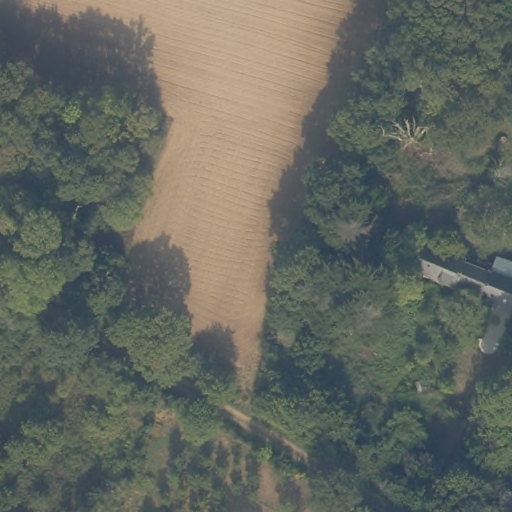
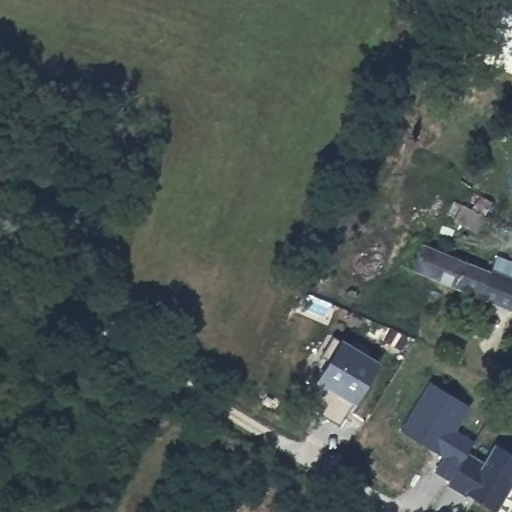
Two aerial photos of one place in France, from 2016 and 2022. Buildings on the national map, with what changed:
unchanged [(418,236),(484,262),(490,245),(511,253),(505,269),(512,271),(512,301),(407,263),(418,236)]
new [(380,361),(355,404),(352,402),(339,424),(303,405),(317,382),(314,381),(328,360),(320,355),(332,335),(340,341),(342,337),(380,361)]
new [(455,431),(472,440),(467,452),(450,481),(433,471),(442,453),(400,430),(429,381),(469,405),(455,431)]
new [(483,461),(495,442),(512,452),(512,496),(511,499),(506,496),(497,511),(466,493),(466,495),(447,484),(450,481),(467,452),(483,461)]

